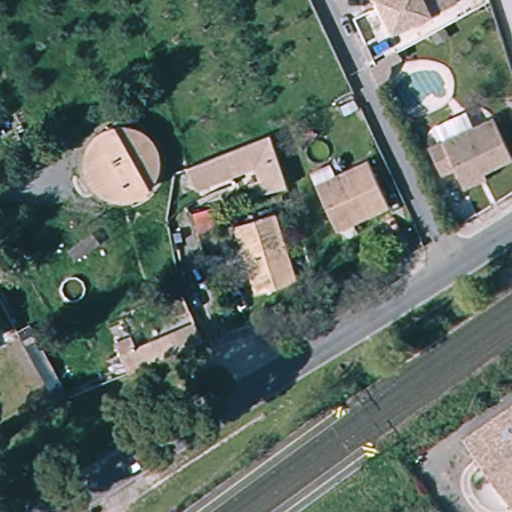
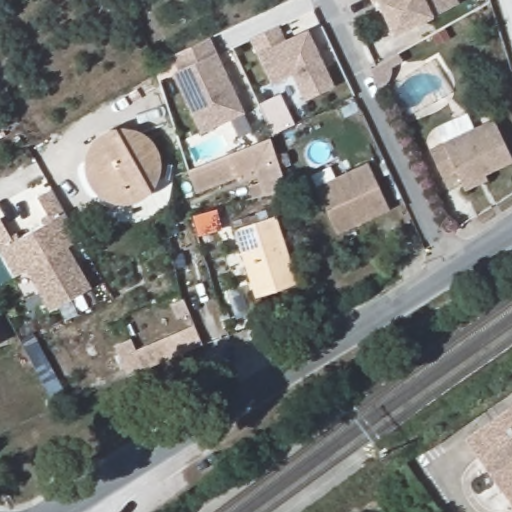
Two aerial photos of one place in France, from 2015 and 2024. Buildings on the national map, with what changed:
unchanged [(458,4),(391,35),(373,0),(456,0),(458,4)]
new [(280,26),(286,39),(307,28),(335,87),(303,101),(291,77),(271,86),(250,39),(280,26)]
new [(209,38),(246,114),(200,136),(173,76),(160,82),(153,64),(209,38)]
unchanged [(462,185),(456,171),(442,178),(429,151),(494,120),(512,160),(512,162),(485,175),(487,180),(465,191),(462,185)]
unchanged [(288,186),(254,194),(250,182),(260,179),(255,164),(196,188),(188,167),(188,166),(271,133),(288,186)]
unchanged [(155,187),(150,196),(141,203),(132,207),(119,208),(108,205),(102,202),(99,200),(86,176),(86,165),(88,158),(90,153),(93,149),(95,146),(99,143),(102,140),(109,137),(114,135),(129,135),(139,138),(148,144),(154,152),(159,164),(159,177),(155,187)]
unchanged [(389,206),(337,230),(316,183),(368,159),(389,206)]
new [(50,222),(37,198),(52,190),(80,240),(66,248),(89,290),(69,301),(31,232),(50,222)]
unchanged [(296,285),(256,298),(235,230),(274,218),(296,285)]
new [(13,242),(31,232),(69,301),(50,312),(26,270),(13,278),(0,255),(0,219),(13,242)]
unchanged [(128,379),(128,378),(115,349),(131,341),(136,353),(195,328),(202,346),(128,379)]
new [(34,333),(66,392),(53,398),(21,341),(34,333)]
unchanged [(512,408),(512,503),(467,440),(512,408)]

